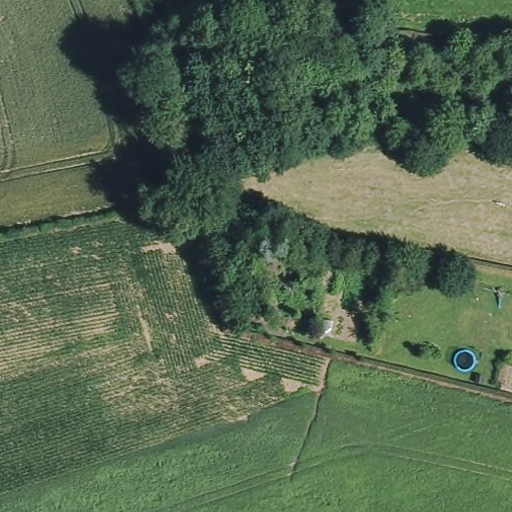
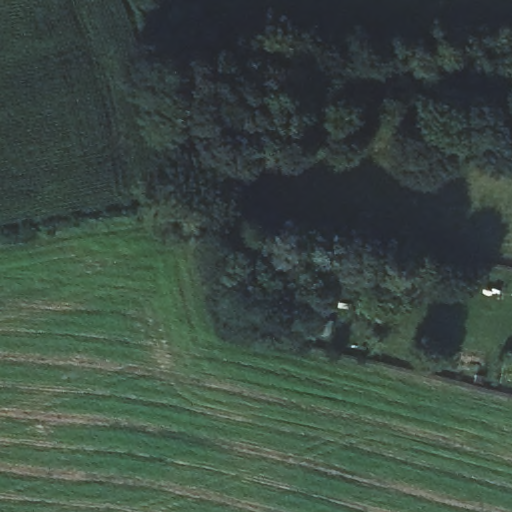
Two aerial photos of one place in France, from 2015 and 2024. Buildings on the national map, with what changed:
[]

